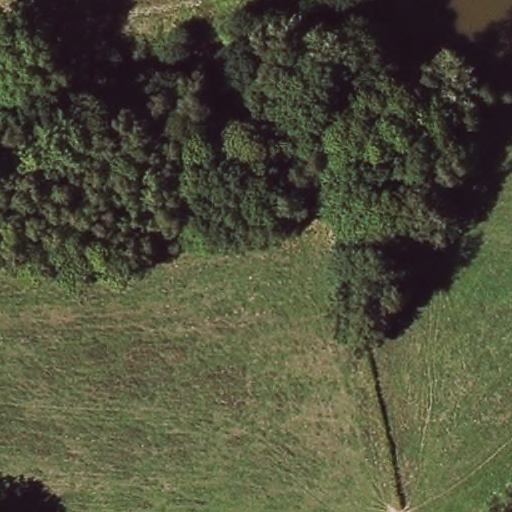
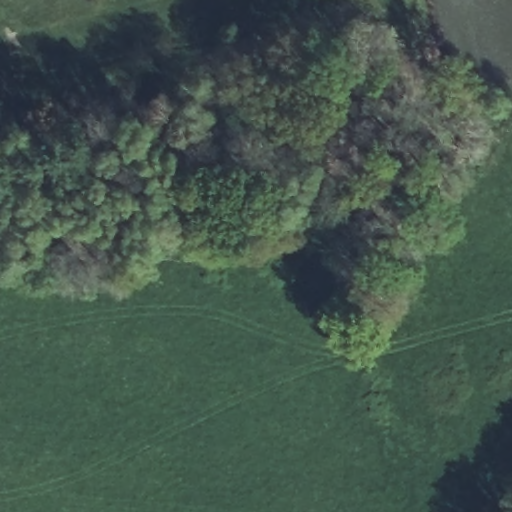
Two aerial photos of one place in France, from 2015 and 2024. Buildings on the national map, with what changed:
[]

